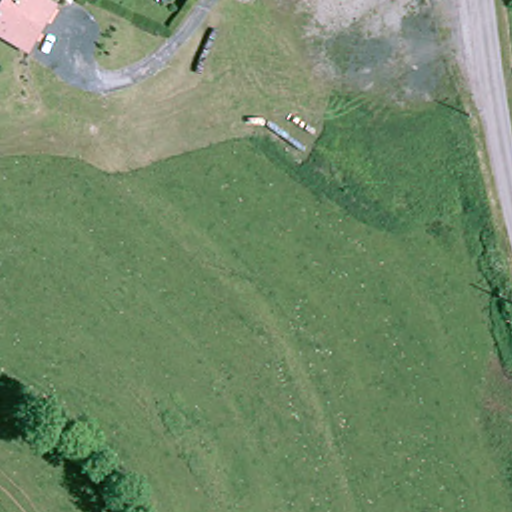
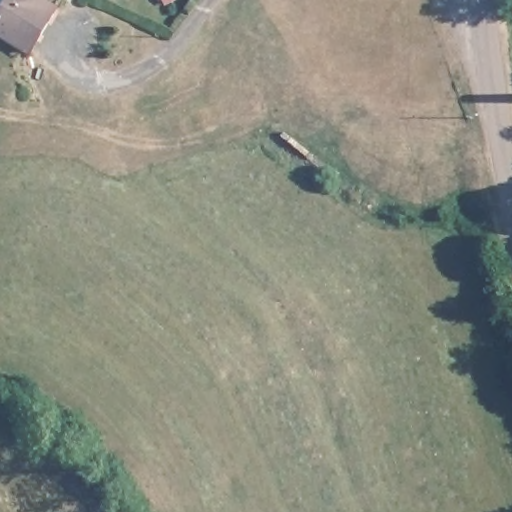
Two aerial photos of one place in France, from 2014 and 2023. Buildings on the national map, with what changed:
unchanged [(0,33),(0,21),(11,0),(47,0),(59,7),(34,52),(0,33)]

